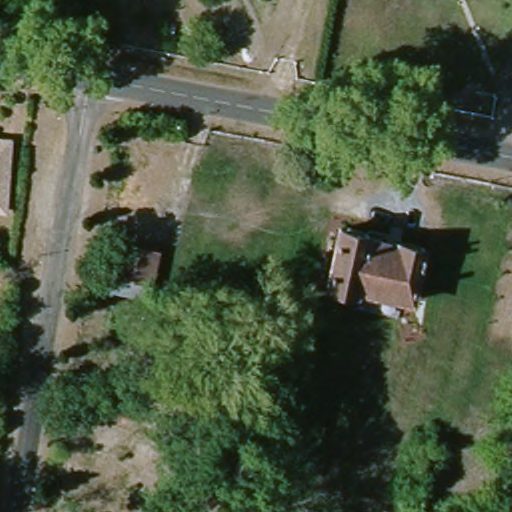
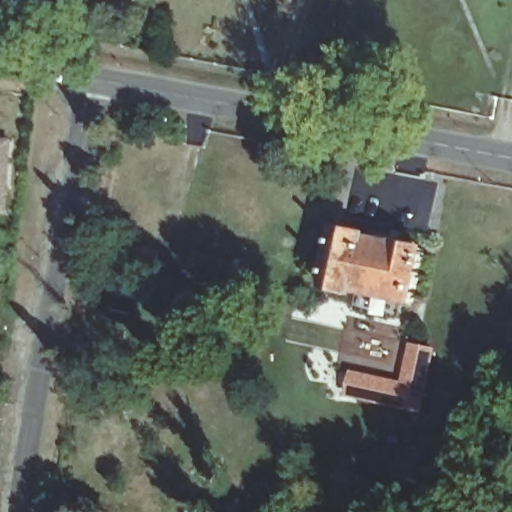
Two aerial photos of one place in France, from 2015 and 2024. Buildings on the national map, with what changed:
unchanged [(3,191),(2,207),(0,207),(0,191),(3,191)]
unchanged [(411,295),(353,283),(352,291),(327,285),(341,222),(365,226),(364,235),(420,247),(411,295)]
unchanged [(123,249),(157,257),(150,285),(116,276),(123,249)]
new [(353,364),(337,361),(347,315),(402,331),(400,340),(436,347),(433,360),(430,359),(429,365),(424,365),(417,396),(424,397),(422,411),(347,395),(349,385),(353,364)]
unchanged [(145,343),(140,365),(119,360),(123,339),(145,343)]

